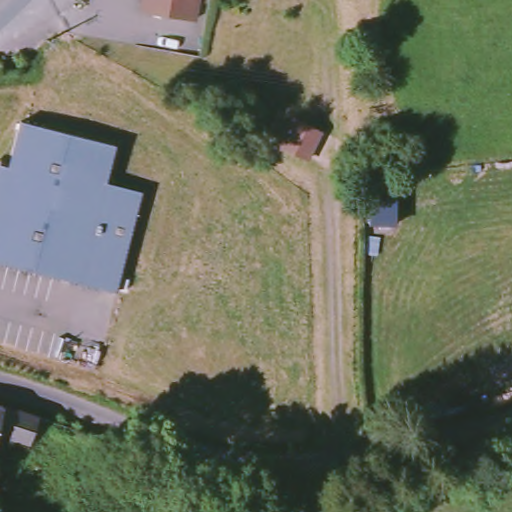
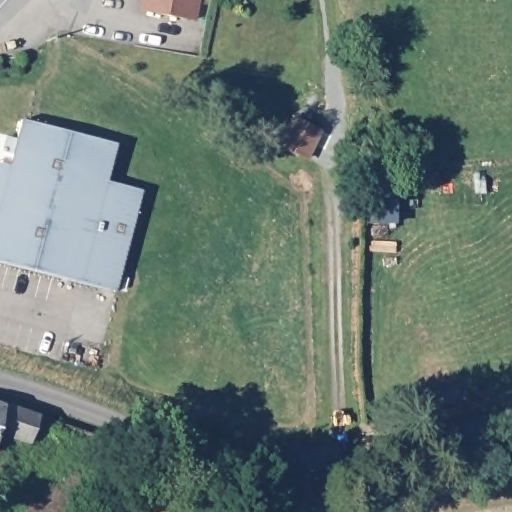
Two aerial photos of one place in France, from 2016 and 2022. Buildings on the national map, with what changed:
unchanged [(145,10),(147,0),(201,0),(197,18),(145,10)]
unchanged [(281,146),(295,119),(325,134),(311,161),(281,146)]
unchanged [(112,181),(146,190),(121,294),(0,264),(0,221),(12,172),(24,127),(26,121),(122,144),(112,181)]
unchanged [(0,169),(12,172),(0,221),(0,169)]
unchanged [(394,207),(394,234),(372,233),(372,207),(394,207)]
unchanged [(0,405),(43,419),(32,445),(8,437),(4,450),(0,449),(0,405)]

